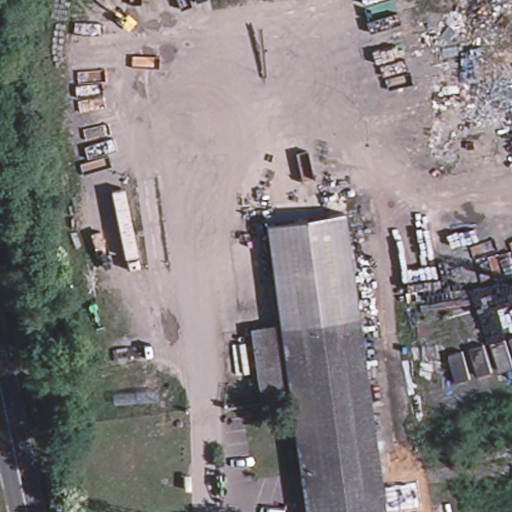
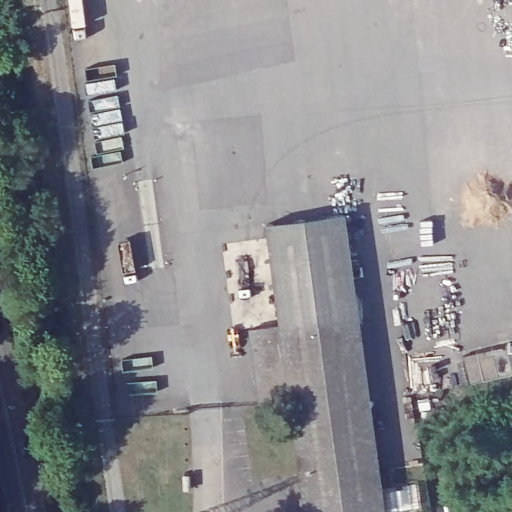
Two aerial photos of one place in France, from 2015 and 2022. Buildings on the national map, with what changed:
unchanged [(345,205),(360,308),(280,321),(265,218),(345,205)]
unchanged [(389,511),(383,512),(308,512),(292,399),(280,321),(360,308),(389,511)]
unchanged [(261,403),(250,326),(280,321),(292,399),(261,403)]

